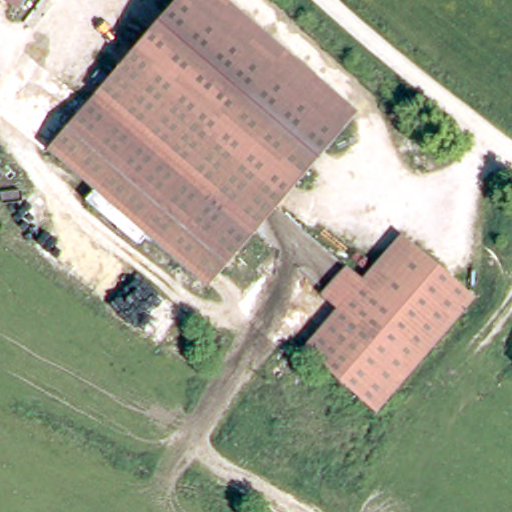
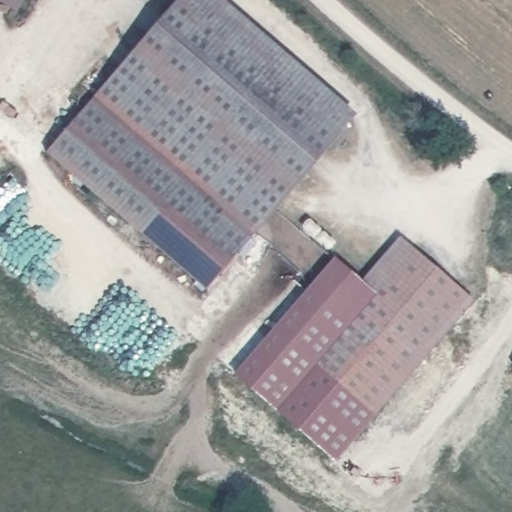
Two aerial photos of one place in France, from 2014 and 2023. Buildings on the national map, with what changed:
unchanged [(0,3),(0,0),(24,0),(18,12),(0,3)]
unchanged [(180,0),(280,86),(340,137),(207,290),(187,273),(48,153),(179,0),(180,0)]
unchanged [(356,117),(340,137),(280,86),(180,0),(220,0),(291,62),(356,117)]
unchanged [(341,270),(358,285),(372,267),(397,239),(411,252),(461,295),(469,301),(441,332),(406,375),(333,312),(317,298),(341,270)]
new [(332,460),(233,375),(335,258),(361,281),(358,285),(341,270),(317,298),(333,312),(298,352),(371,415),(332,460)]
unchanged [(333,312),(406,375),(371,415),(298,352),(333,312)]

